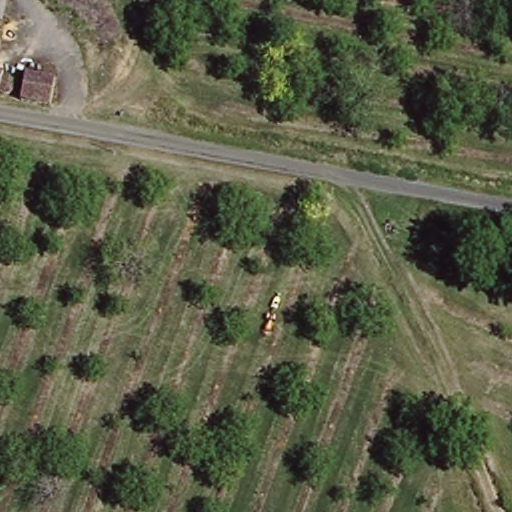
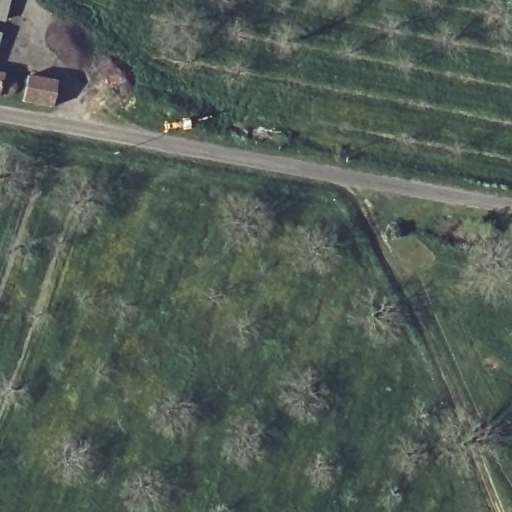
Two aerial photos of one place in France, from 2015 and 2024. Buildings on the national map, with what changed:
unchanged [(0,19),(0,0),(10,0),(6,20),(0,19)]
unchanged [(0,97),(0,75),(4,76),(0,97)]
unchanged [(65,103),(64,112),(35,107),(35,105),(40,81),(69,87),(65,103)]

